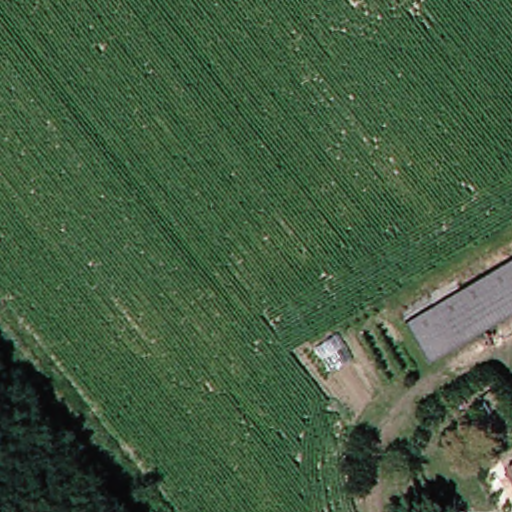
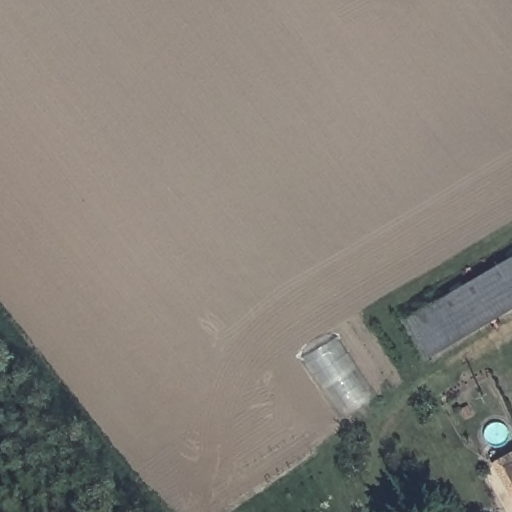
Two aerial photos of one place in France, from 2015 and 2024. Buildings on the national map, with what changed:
unchanged [(410,316),(512,255),(512,308),(432,355),(410,316)]
new [(380,405),(348,425),(306,358),(338,337),(380,405)]
unchanged [(512,461),(512,471),(508,463),(512,461)]

